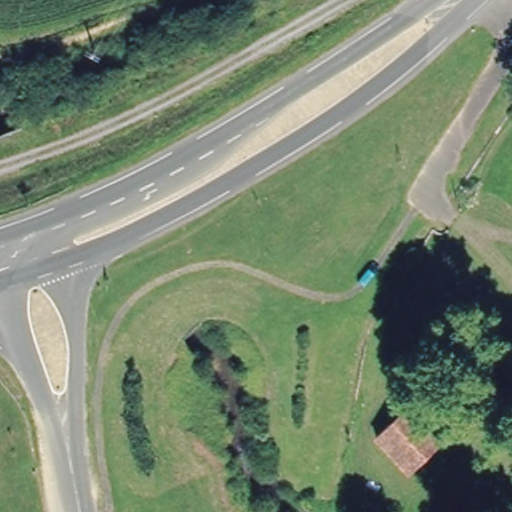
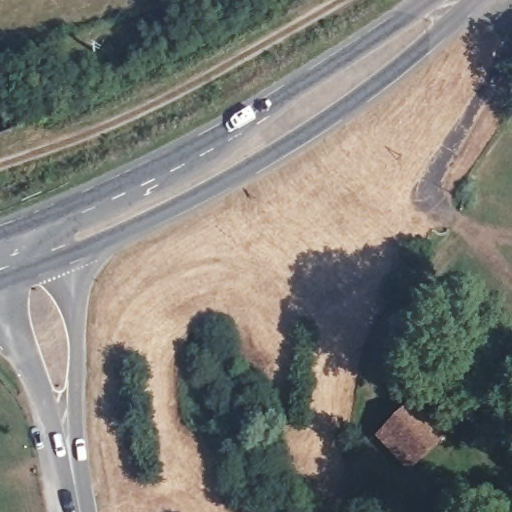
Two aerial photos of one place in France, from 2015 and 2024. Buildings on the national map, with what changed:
unchanged [(411,402),(446,435),(413,470),(380,437),(411,402)]

